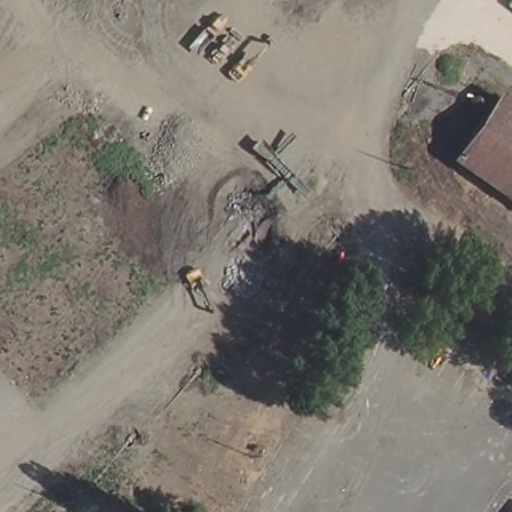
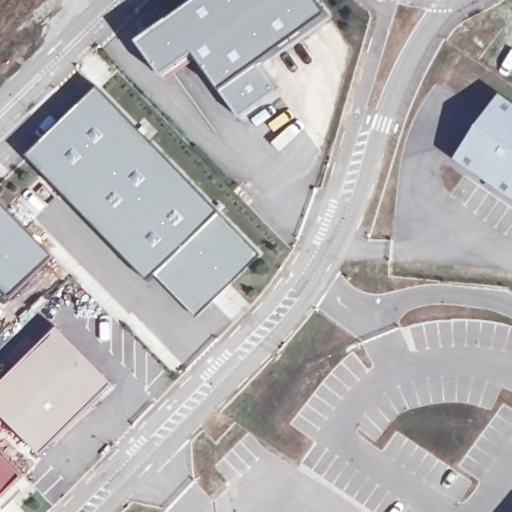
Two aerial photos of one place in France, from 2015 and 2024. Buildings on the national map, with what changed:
new [(198,0),(318,0),(329,16),(259,66),(277,92),(240,119),(195,56),(163,79),(138,43),(198,0)]
new [(187,294),(163,269),(149,283),(27,157),(98,87),(258,251),(209,298),(200,307),(187,294)]
unchanged [(505,96),(512,101),(512,197),(459,161),(505,96)]
new [(0,287),(0,202),(56,260),(14,300),(0,287)]
new [(58,328),(114,385),(42,457),(0,414),(0,386),(58,328)]
new [(6,343),(0,349),(0,337),(6,343)]
new [(31,483),(3,512),(0,509),(0,452),(31,483)]

